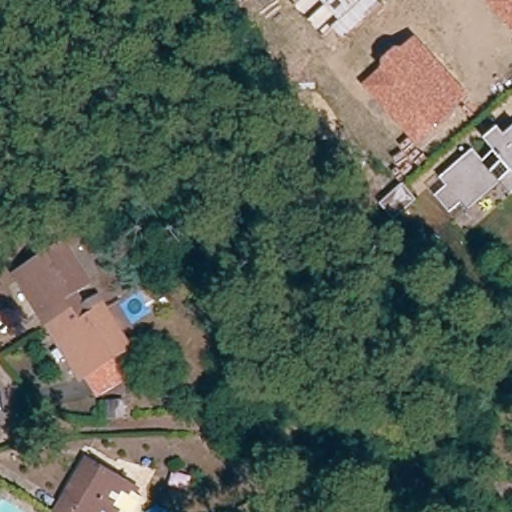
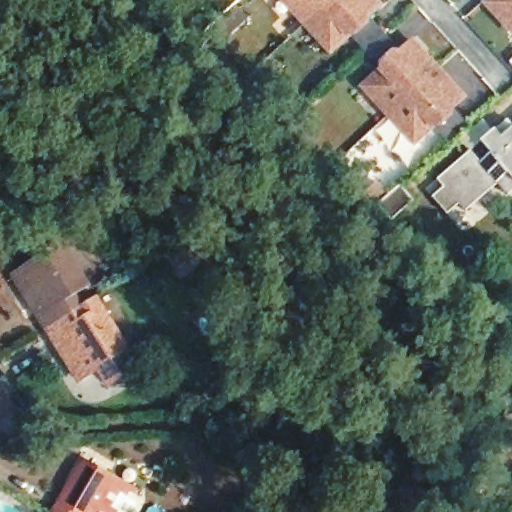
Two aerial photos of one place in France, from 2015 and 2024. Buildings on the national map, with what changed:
new [(373,16),(403,49),(397,48),(382,60),(382,67),(352,36),(333,56),(285,0),(383,0),(385,2),(373,16)]
unchanged [(512,0),(512,32),(485,0),(512,0)]
unchanged [(471,96),(417,146),(362,84),(382,67),(382,60),(397,48),(403,49),(415,37),(471,96)]
unchanged [(439,178),(473,148),(485,163),(494,151),(486,140),(497,128),(511,117),(512,118),(512,195),(502,184),(468,211),(463,205),(450,215),(436,196),(445,186),(439,178)]
unchanged [(416,199),(391,220),(378,203),(402,183),(416,199)]
unchanged [(44,331),(11,279),(61,248),(86,288),(72,297),(80,309),(44,331)]
unchanged [(87,321),(101,313),(126,353),(76,384),(44,331),(80,309),(87,321)]
unchanged [(86,465),(131,492),(120,512),(59,512),(86,465)]

